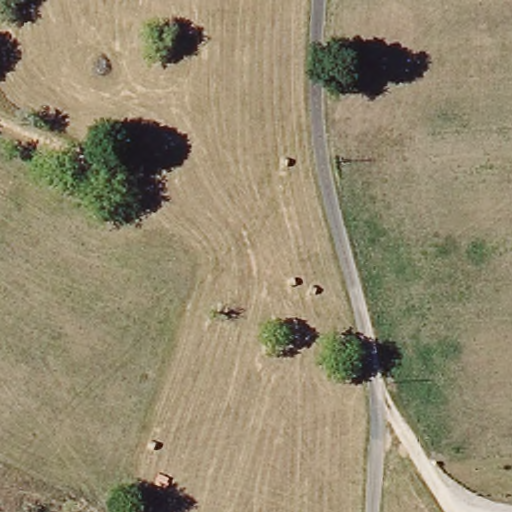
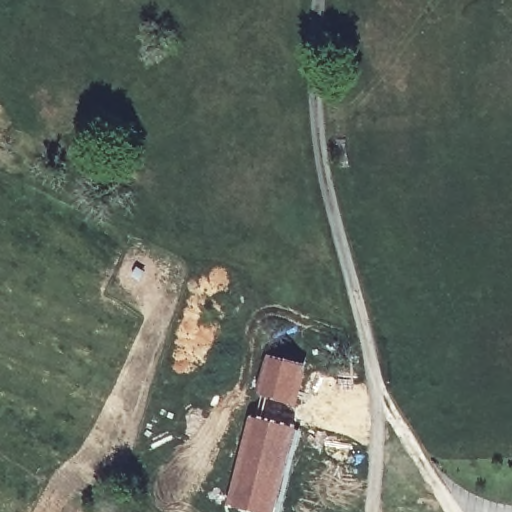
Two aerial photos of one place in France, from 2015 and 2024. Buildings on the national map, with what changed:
new [(265,354),(307,365),(295,409),(255,397),(265,354)]
new [(248,415),(297,429),(276,512),(247,512),(225,506),(248,415)]

